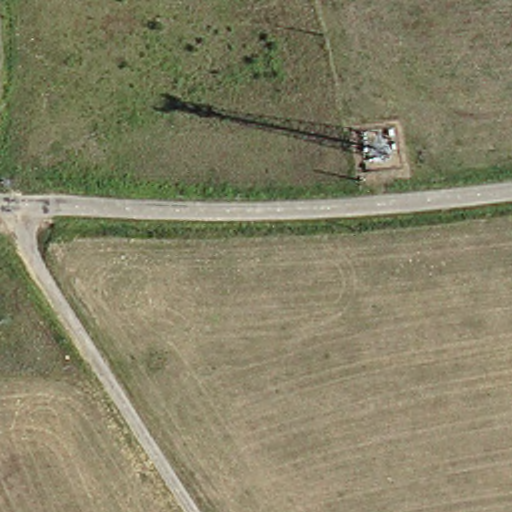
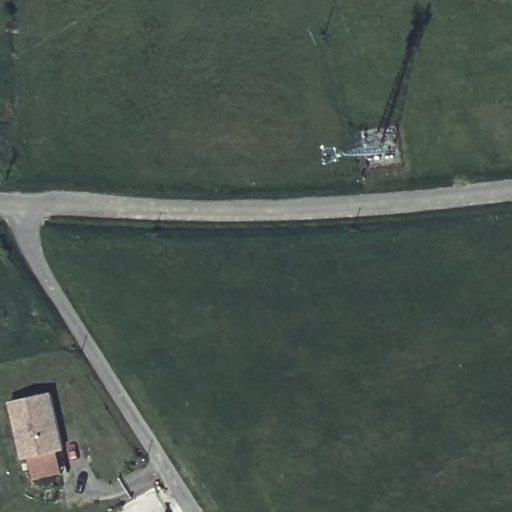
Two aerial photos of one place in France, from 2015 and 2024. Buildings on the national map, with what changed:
new [(11,405),(50,397),(63,454),(23,462),(11,405)]
new [(58,455),(61,473),(32,480),(28,461),(58,455)]

